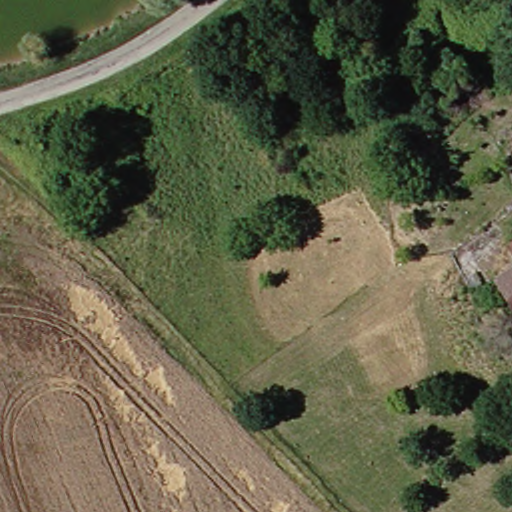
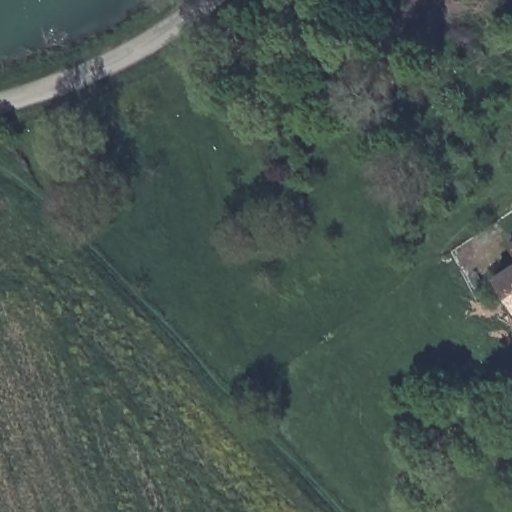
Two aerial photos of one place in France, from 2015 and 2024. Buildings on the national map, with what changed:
unchanged [(485,274),(509,259),(499,244),(512,237),(512,316),(485,274)]

